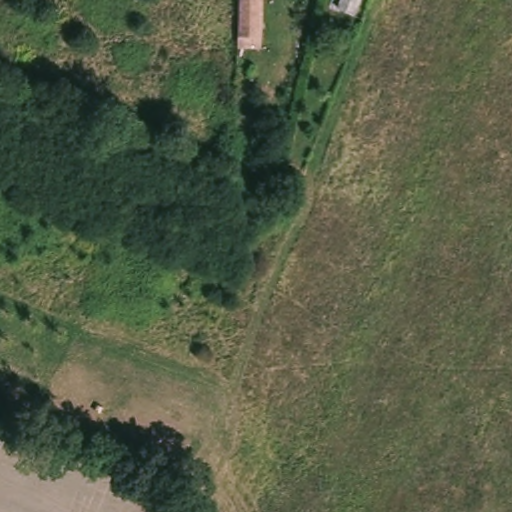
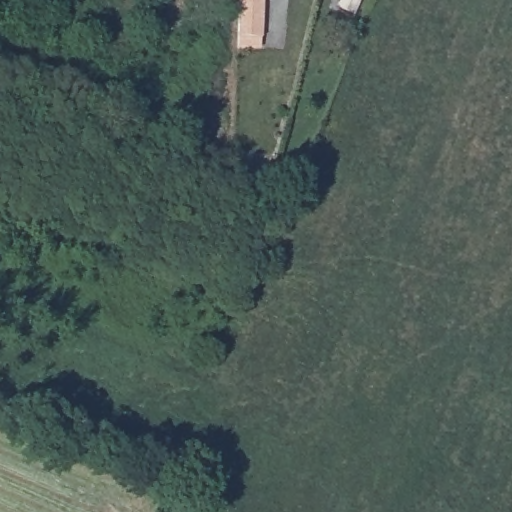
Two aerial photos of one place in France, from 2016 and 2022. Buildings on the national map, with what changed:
unchanged [(262,0),(259,52),(234,50),(236,0),(262,0)]

